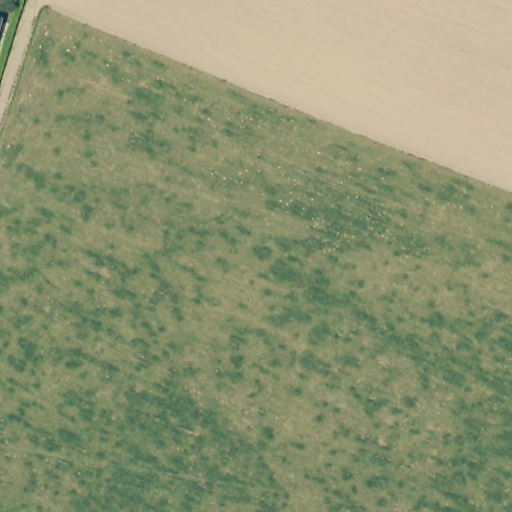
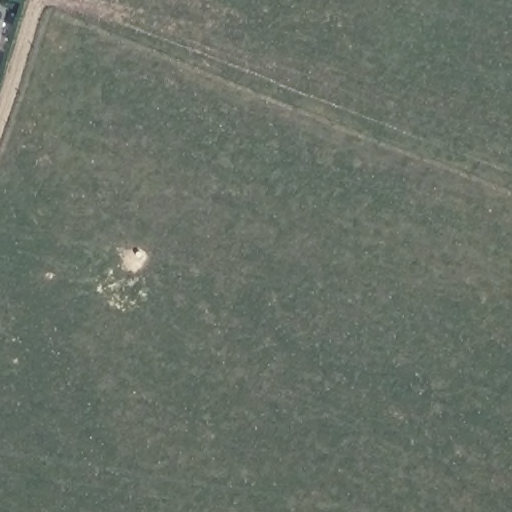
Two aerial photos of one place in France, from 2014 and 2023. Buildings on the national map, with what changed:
unchanged [(0,22),(0,20),(1,20),(0,22)]

